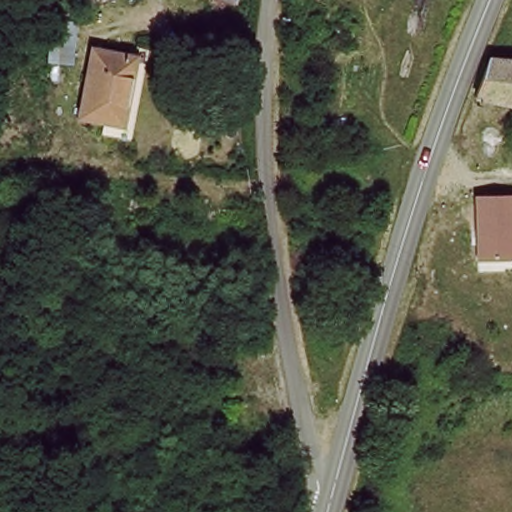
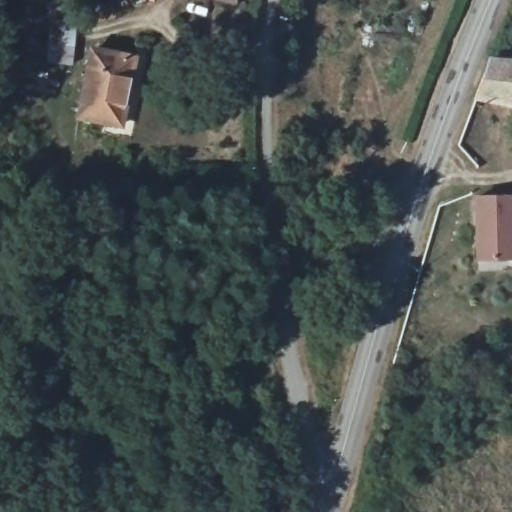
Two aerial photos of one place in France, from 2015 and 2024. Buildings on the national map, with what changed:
unchanged [(137,57),(122,123),(78,111),(95,47),(137,57)]
unchanged [(512,56),(512,102),(478,93),(493,54),(512,56)]
unchanged [(476,198),(512,198),(512,261),(477,261),(476,198)]

